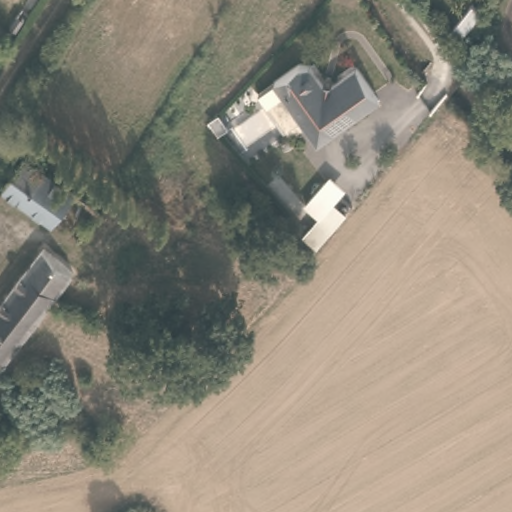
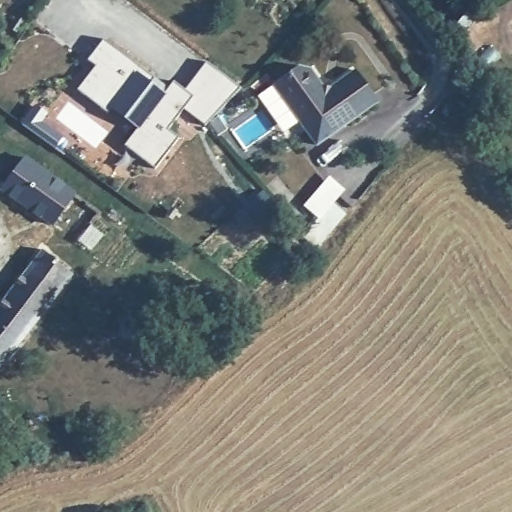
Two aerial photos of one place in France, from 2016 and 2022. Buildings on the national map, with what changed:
new [(204,125),(184,109),(167,129),(179,139),(155,169),(124,144),(137,130),(111,109),(108,113),(77,89),(95,66),(87,60),(102,39),(169,86),(174,80),(185,90),(205,62),(239,87),(204,125)]
unchanged [(374,106),(312,150),(269,89),(295,71),(308,74),(324,90),(326,91),(334,86),(351,74),(374,106)]
new [(55,148),(21,124),(34,104),(49,113),(42,122),(64,137),(55,148)]
unchanged [(76,195),(54,225),(3,189),(25,157),(76,195)]
unchanged [(0,367),(0,307),(16,285),(44,250),(73,274),(0,367)]
unchanged [(139,341),(119,336),(121,322),(143,328),(139,341)]

